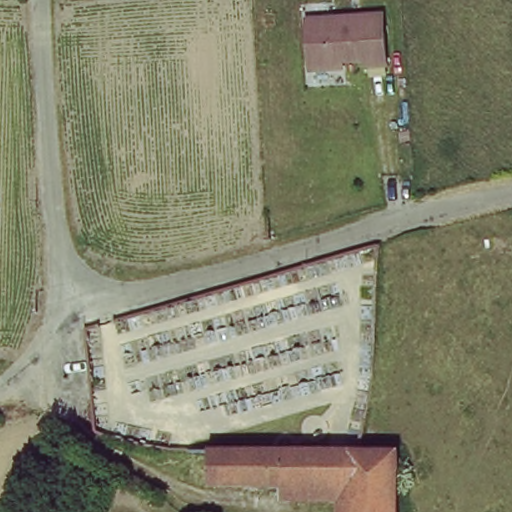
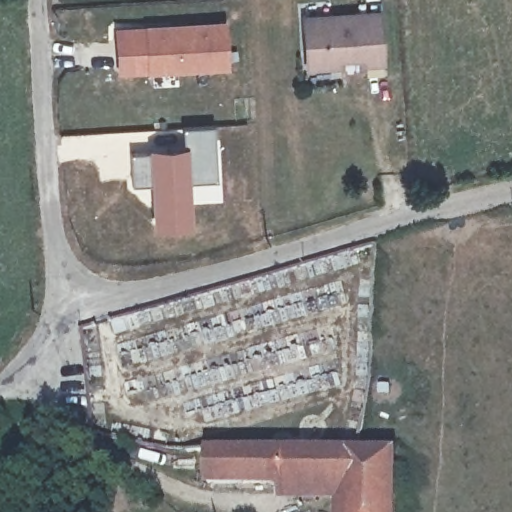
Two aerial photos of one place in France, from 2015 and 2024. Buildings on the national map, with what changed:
unchanged [(306,71),(305,65),(301,22),(376,15),(381,65),(364,66),(364,60),(336,62),(337,68),(306,71)]
new [(147,75),(144,26),(226,21),(228,69),(147,75)]
new [(214,127),(217,181),(191,183),(186,146),(184,129),(214,127)]
new [(193,228),(153,230),(148,186),(131,187),(129,152),(148,149),(186,146),(191,183),(193,228)]
unchanged [(186,477),(186,446),(364,449),(398,451),(397,512),(348,512),(347,484),(186,477)]

